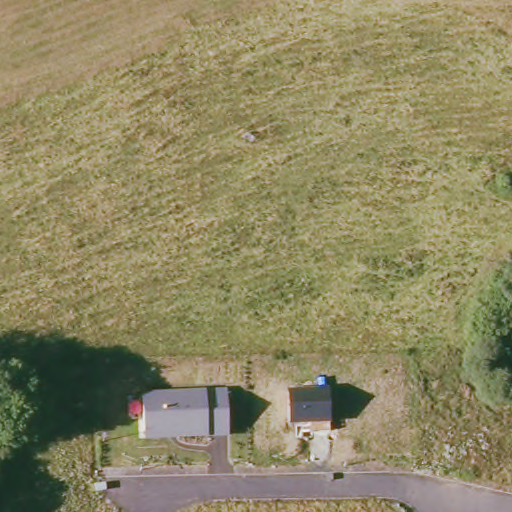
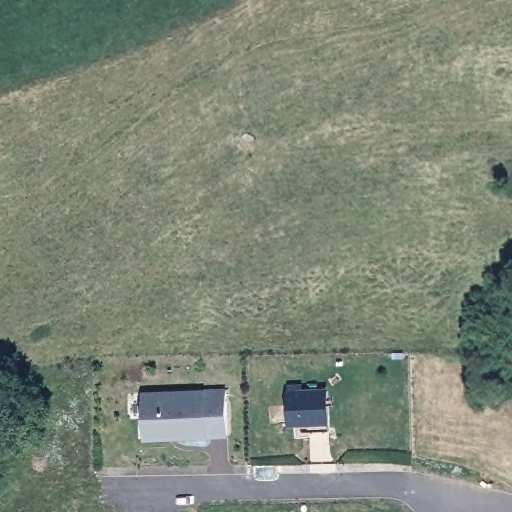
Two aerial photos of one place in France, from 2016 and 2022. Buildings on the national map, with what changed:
unchanged [(287,389),(329,387),(330,424),(330,430),(312,431),(310,424),(289,424),(287,389)]
unchanged [(141,393),(227,389),(229,435),(142,441),(141,393)]

